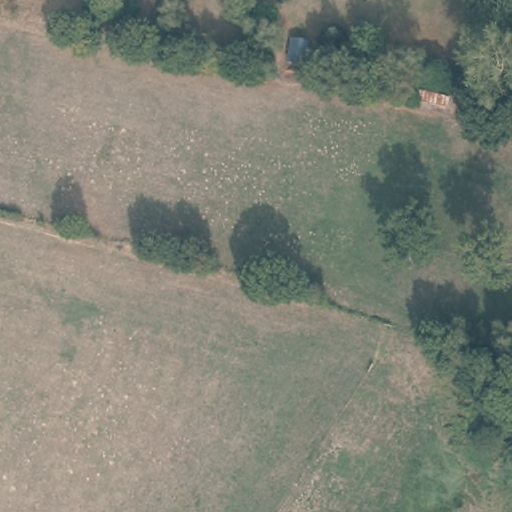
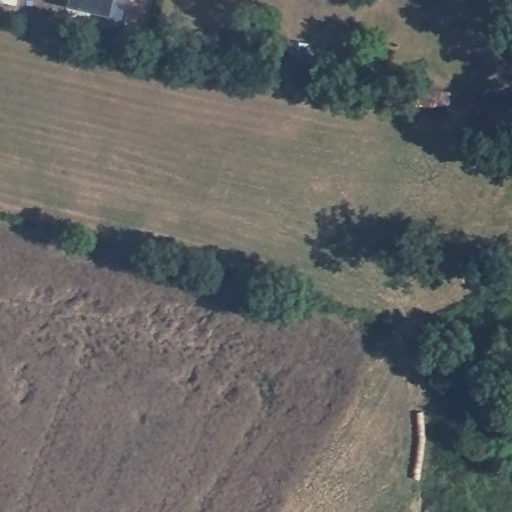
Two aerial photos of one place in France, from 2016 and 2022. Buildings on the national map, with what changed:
new [(69,0),(129,0),(124,24),(108,21),(109,15),(68,6),(69,0)]
unchanged [(447,91),(444,107),(416,100),(421,86),(447,91)]

